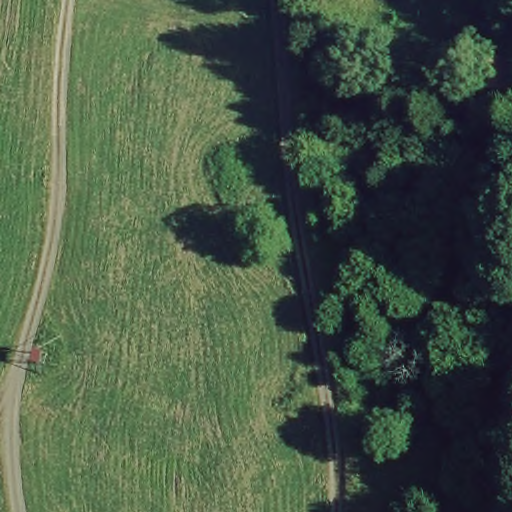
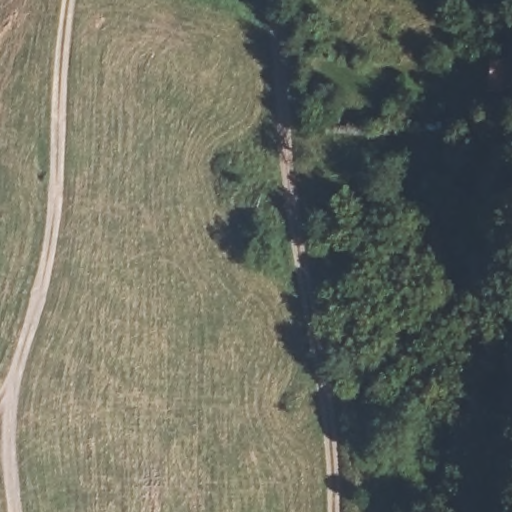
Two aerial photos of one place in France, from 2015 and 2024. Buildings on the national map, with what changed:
unchanged [(488,72),(490,59),(512,62),(512,92),(487,89),(488,72)]

